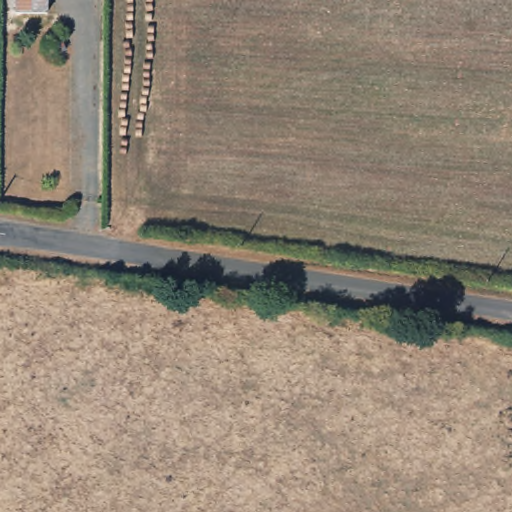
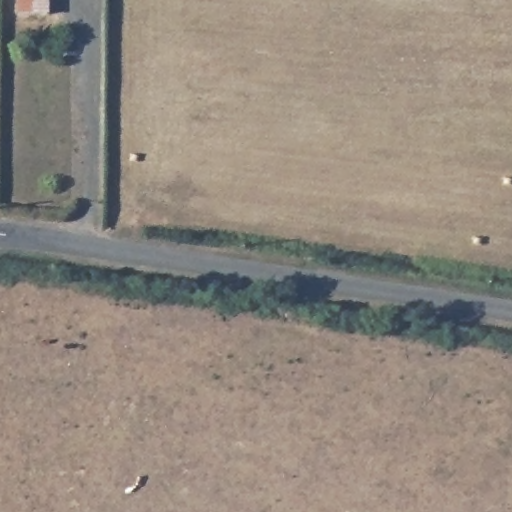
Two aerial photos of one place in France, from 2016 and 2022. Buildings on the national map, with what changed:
unchanged [(16,0),(46,0),(47,17),(16,16),(16,0)]

